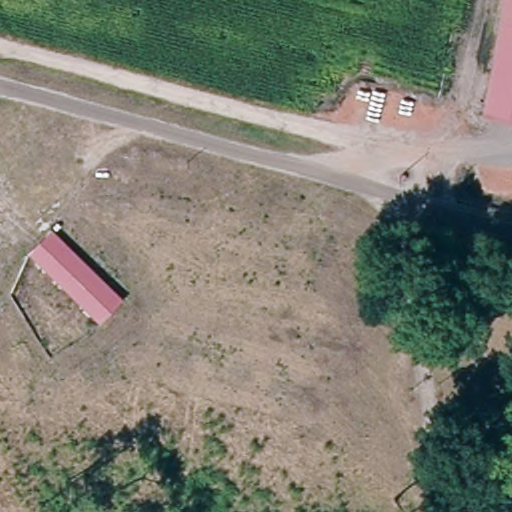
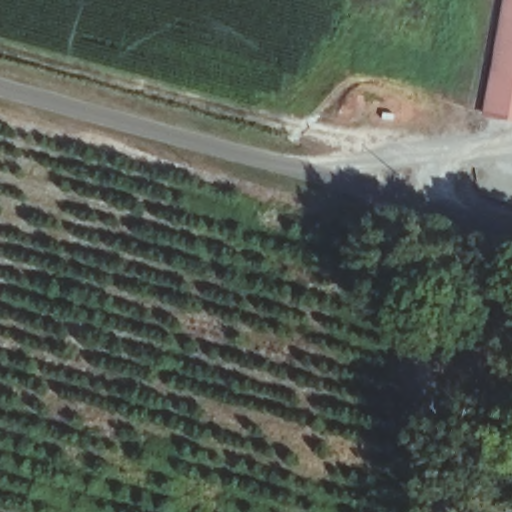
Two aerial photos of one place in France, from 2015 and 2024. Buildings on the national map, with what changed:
unchanged [(512,95),(491,93),(506,0),(512,0),(512,95)]
demolished [(30,252),(48,232),(124,303),(105,321),(30,252)]

